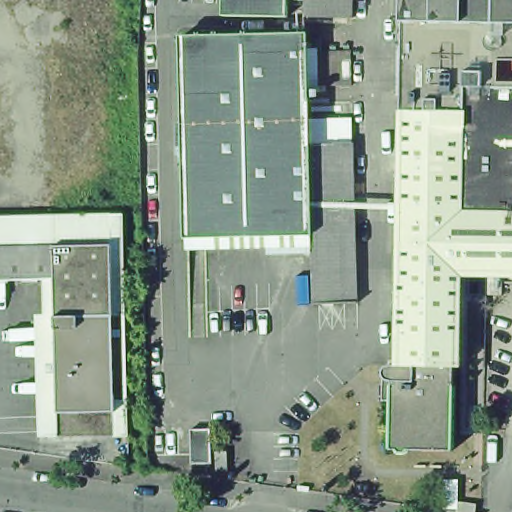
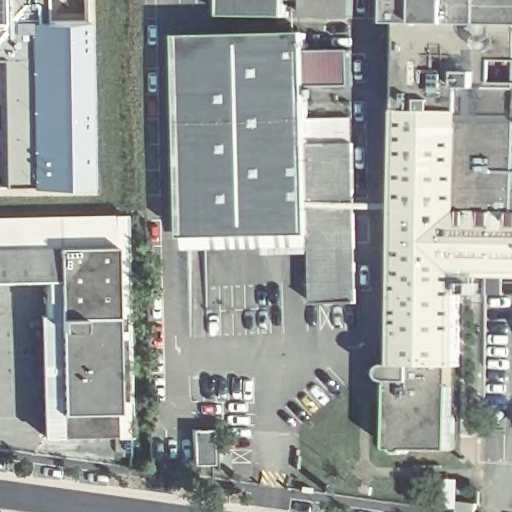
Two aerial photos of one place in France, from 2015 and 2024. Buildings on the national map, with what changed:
new [(25,10),(79,10),(83,179),(0,181),(0,0),(24,0),(25,10)]
unchanged [(284,16),(219,16),(219,0),(284,0),(284,16)]
unchanged [(348,18),(299,16),(299,0),(349,0),(348,18)]
unchanged [(400,0),(512,0),(512,217),(396,214),(400,0)]
unchanged [(177,36),(222,35),(302,33),(303,51),(347,50),(347,85),(304,86),(304,102),(348,101),(353,303),(309,304),(307,234),(182,237),(177,36)]
unchanged [(35,216),(94,215),(119,214),(125,434),(110,434),(110,436),(109,436),(109,434),(39,435),(39,412),(45,412),(44,378),(37,378),(35,315),(40,315),(40,278),(0,279),(0,217),(35,216)]
unchanged [(512,281),(482,280),(457,279),(456,371),(450,371),(393,369),(396,214),(512,217),(512,281)]
demolished [(491,300),(491,287),(512,288),(512,313),(490,313),(491,300)]
unchanged [(449,433),(449,455),(405,454),(405,455),(400,458),(396,458),(392,454),(386,454),(387,431),(387,386),(379,377),(387,369),(393,369),(450,371),(449,433)]
unchanged [(192,429),(212,428),(212,463),(192,463),(192,429)]

